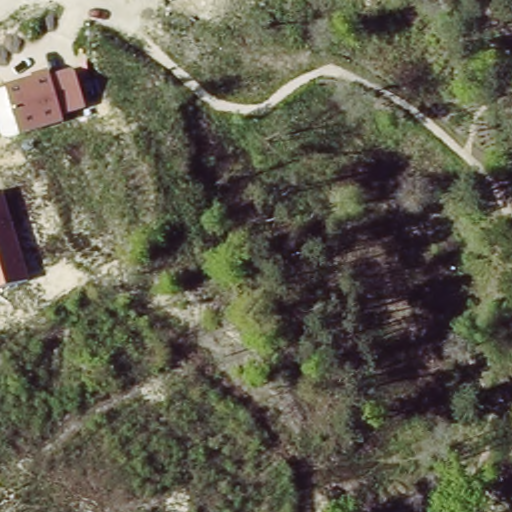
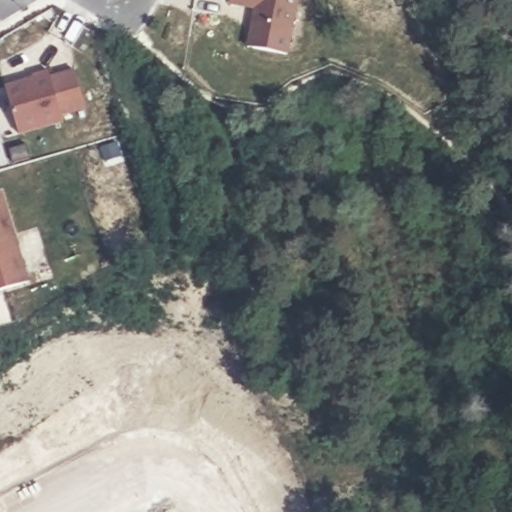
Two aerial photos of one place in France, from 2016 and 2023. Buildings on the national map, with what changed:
new [(229,3),(230,0),(298,0),(288,55),(254,48),(250,48),(256,20),(257,8),(229,3)]
unchanged [(5,83),(48,71),(50,76),(74,69),(86,110),(62,116),(64,123),(21,135),(5,83)]
unchanged [(0,288),(0,193),(2,192),(29,280),(0,288)]

